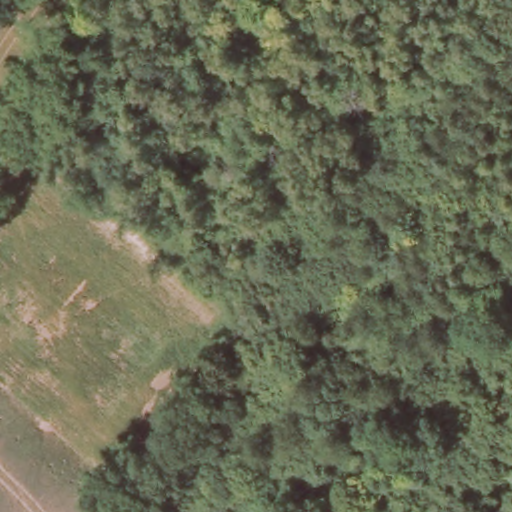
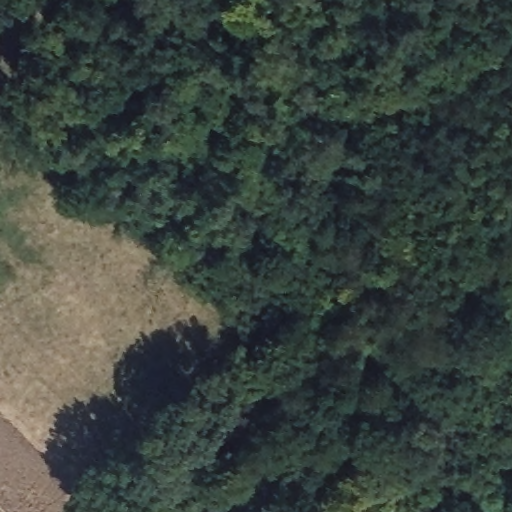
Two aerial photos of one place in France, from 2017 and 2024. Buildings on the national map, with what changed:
unchanged [(172,135),(195,153),(182,169),(160,150),(172,135)]

